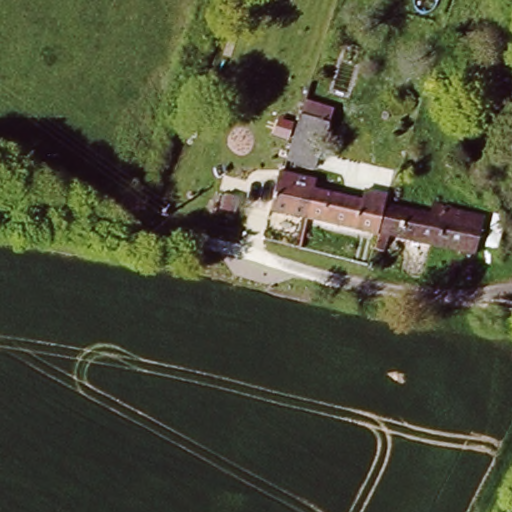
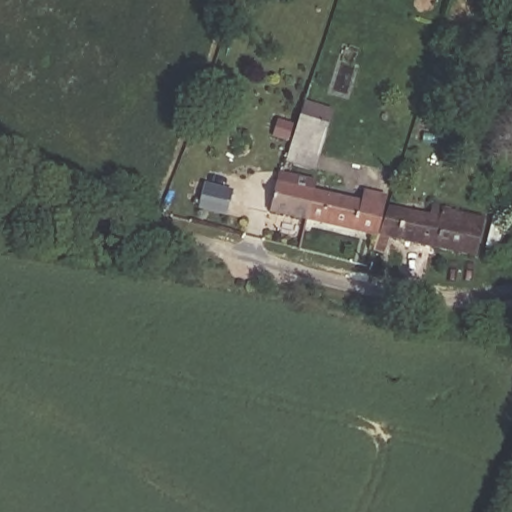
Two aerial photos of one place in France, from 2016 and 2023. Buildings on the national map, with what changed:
unchanged [(306,107),(339,118),(325,161),(291,153),(306,107)]
unchanged [(208,187),(227,190),(223,210),(204,206),(208,187)]
unchanged [(274,199),(287,202),(290,187),(313,194),(308,226),(270,217),(274,199)]
unchanged [(313,194),(382,204),(375,236),(308,226),(313,194)]
unchanged [(382,204),(436,212),(432,244),(375,236),(382,204)]
unchanged [(436,212),(478,220),(470,250),(432,244),(436,212)]

